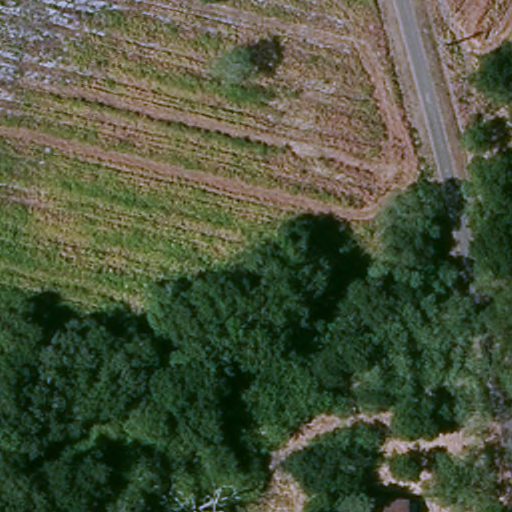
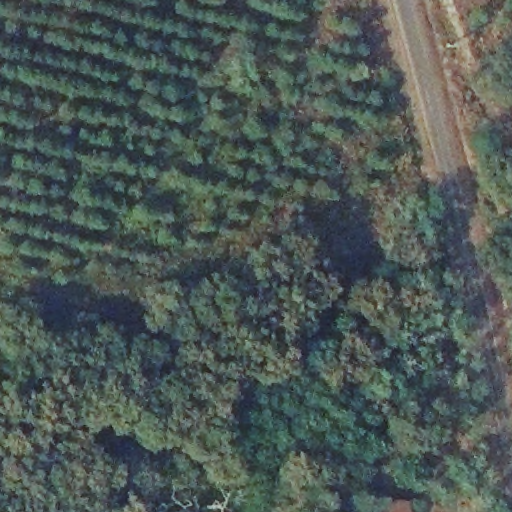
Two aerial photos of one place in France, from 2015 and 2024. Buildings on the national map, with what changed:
unchanged [(423,512),(346,512),(348,491),(423,497),(423,512)]

